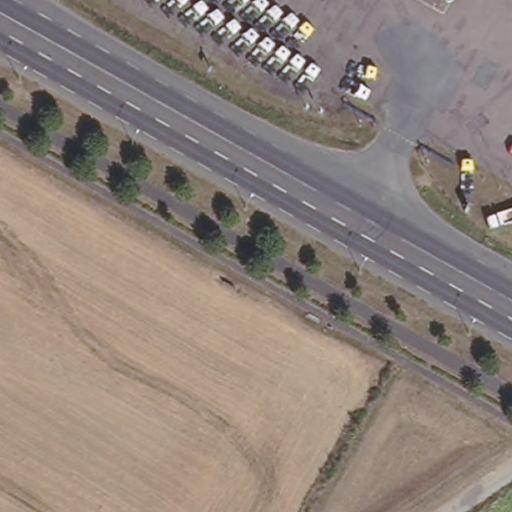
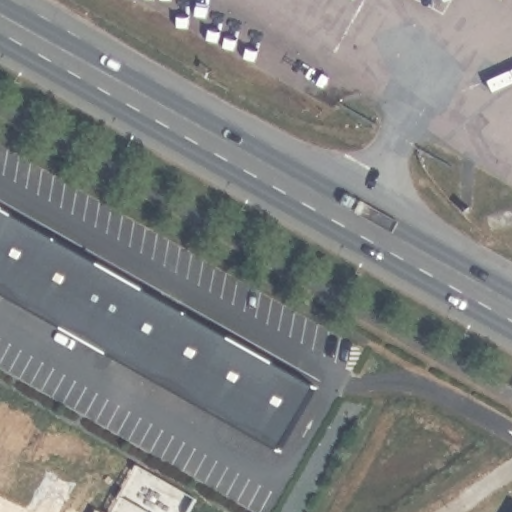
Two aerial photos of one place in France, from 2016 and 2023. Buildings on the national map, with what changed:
new [(323,380),(283,447),(0,290),(0,196),(323,380)]

